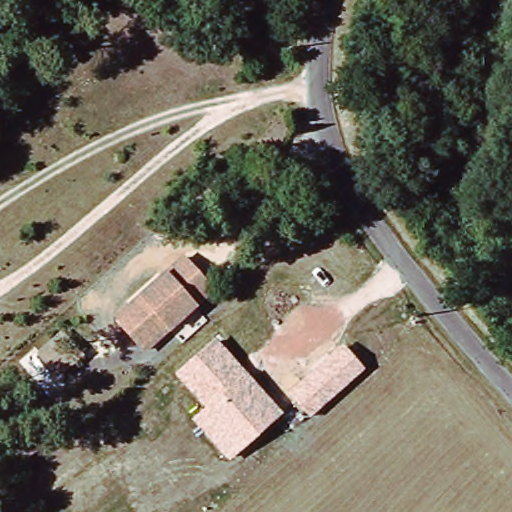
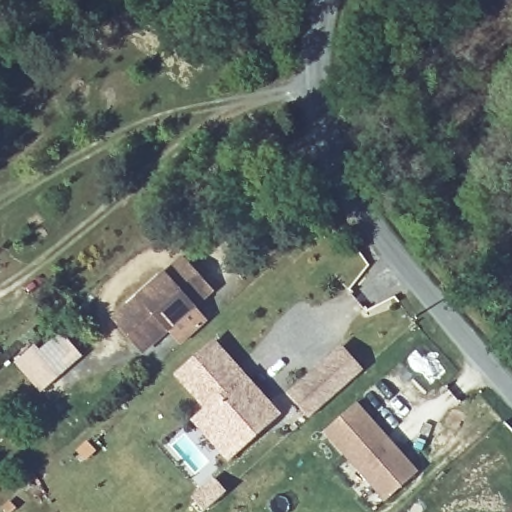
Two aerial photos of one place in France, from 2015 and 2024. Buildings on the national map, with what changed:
unchanged [(212,289),(146,351),(115,318),(182,256),(212,289)]
unchanged [(82,356),(57,378),(35,353),(61,331),(82,356)]
unchanged [(246,372),(282,413),(227,460),(191,418),(204,407),(173,374),(214,337),(246,372)]
unchanged [(363,369),(308,417),(287,392),(341,344),(363,369)]
new [(357,402),(417,471),(385,500),(323,431),(357,402)]

